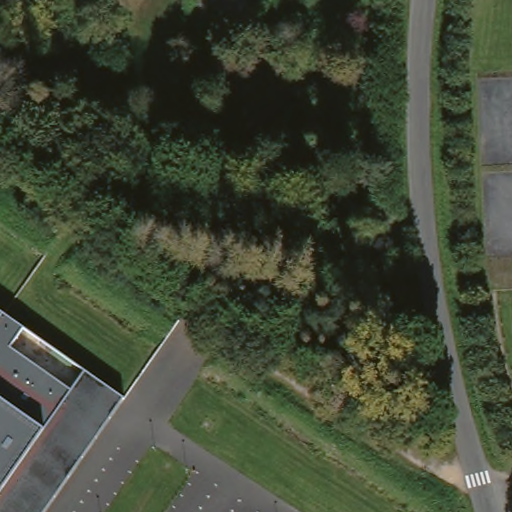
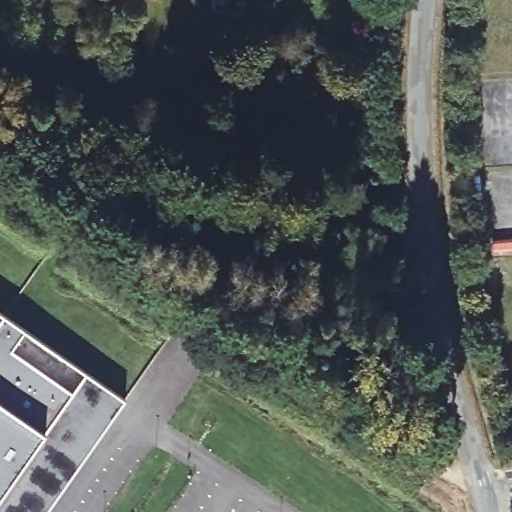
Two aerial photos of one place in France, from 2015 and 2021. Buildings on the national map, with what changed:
unchanged [(50,512),(0,512),(0,306),(130,395),(50,512)]

